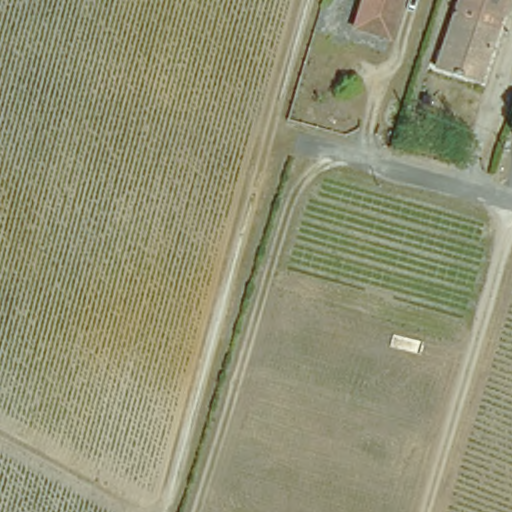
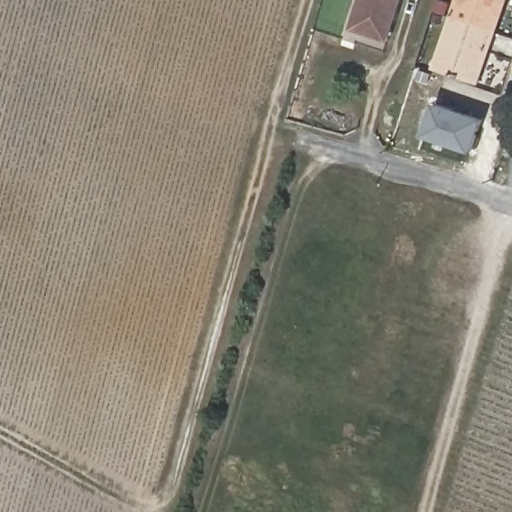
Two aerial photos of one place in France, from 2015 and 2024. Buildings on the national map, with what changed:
unchanged [(388,32),(355,21),(362,0),(398,0),(388,32)]
unchanged [(475,70),(433,55),(452,0),(498,0),(475,70)]
new [(435,104),(481,119),(470,150),(424,134),(435,104)]

